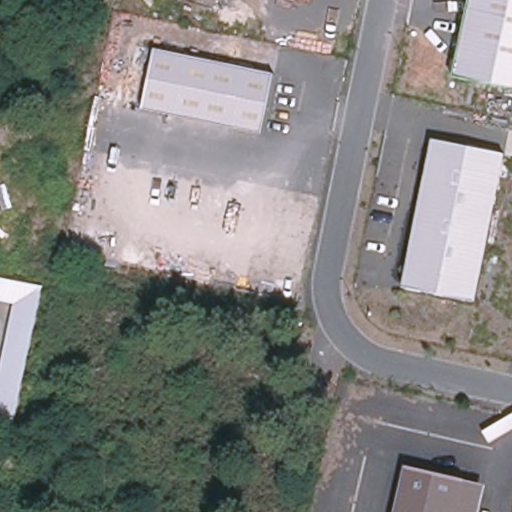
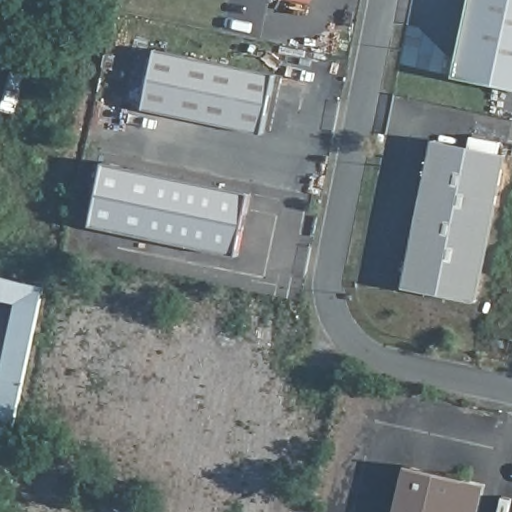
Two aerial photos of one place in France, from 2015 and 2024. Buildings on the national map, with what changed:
unchanged [(298,0),(314,0),(313,3),(298,0)]
unchanged [(471,0),(512,0),(512,90),(453,78),(471,0)]
unchanged [(271,69),(258,129),(141,105),(153,46),(271,69)]
unchanged [(434,132),(505,146),(502,161),(431,146),(434,132)]
unchanged [(502,161),(472,309),(401,294),(431,146),(502,161)]
new [(237,256),(92,225),(106,161),(252,192),(237,256)]
demolished [(252,279),(219,273),(236,183),(270,189),(252,279)]
demolished [(197,268),(166,262),(176,214),(208,220),(197,268)]
unchanged [(15,427),(0,423),(0,377),(16,304),(0,301),(0,277),(45,287),(15,427)]
unchanged [(407,468),(467,481),(459,512),(397,512),(407,468)]
unchanged [(486,486),(479,512),(459,512),(467,481),(486,486)]

